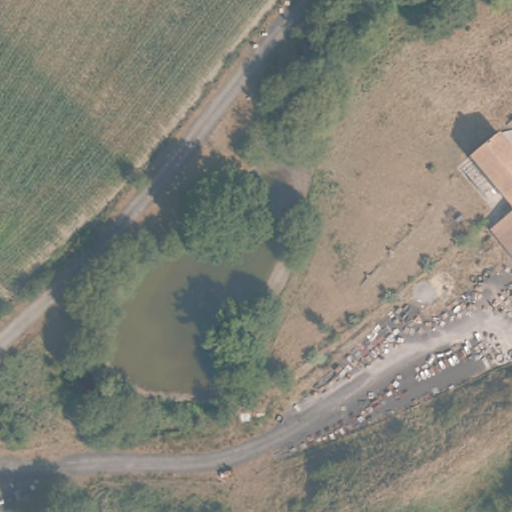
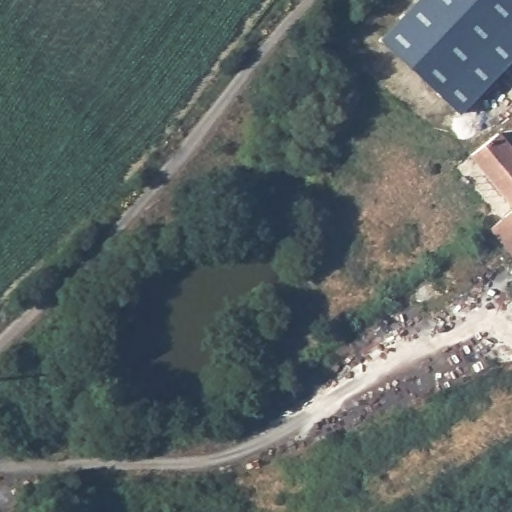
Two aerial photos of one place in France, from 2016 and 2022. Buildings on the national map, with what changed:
new [(378,38),(414,0),(512,0),(512,60),(460,114),(378,38)]
unchanged [(502,133),(512,146),(512,205),(472,155),(502,133)]
unchanged [(512,212),(512,254),(492,228),(512,212)]

